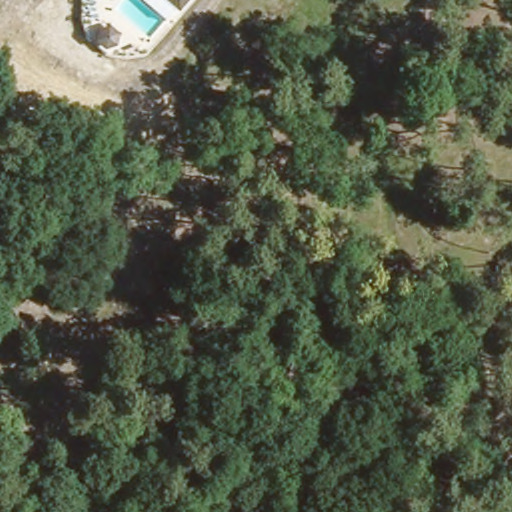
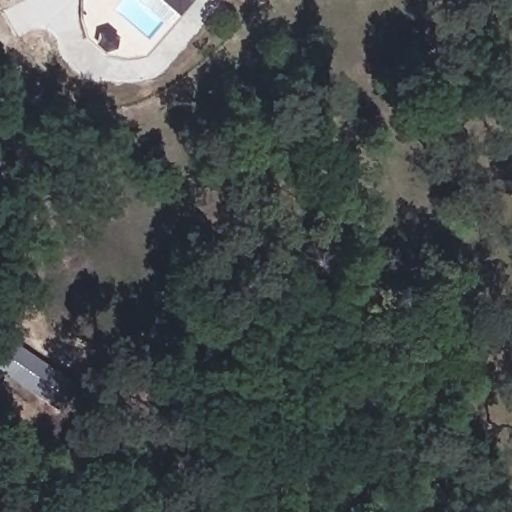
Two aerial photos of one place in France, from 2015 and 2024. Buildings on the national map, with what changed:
unchanged [(163,12),(147,0),(177,0),(176,0),(165,14),(163,12)]
new [(60,406),(58,409),(0,366),(1,354),(10,342),(77,386),(62,408),(60,406)]

